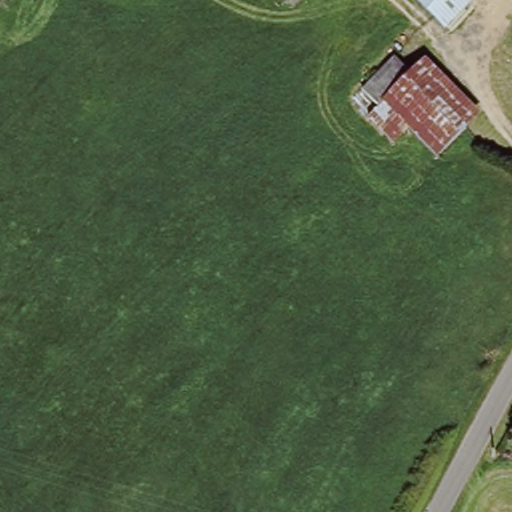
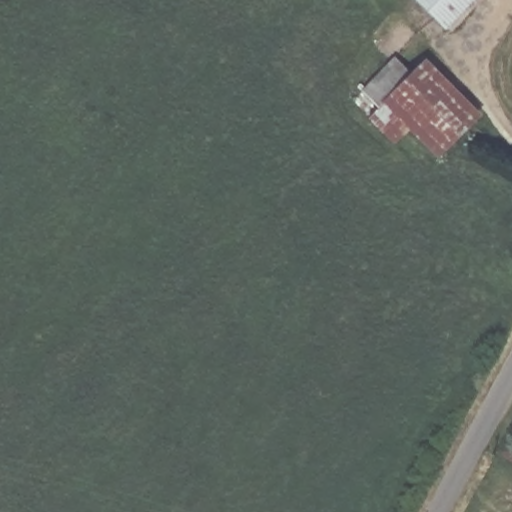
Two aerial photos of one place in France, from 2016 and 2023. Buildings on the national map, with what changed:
unchanged [(420,0),(473,0),(447,27),(420,0)]
unchanged [(476,112),(435,156),(378,102),(381,99),(364,82),(389,56),(406,72),(420,58),(476,112)]

